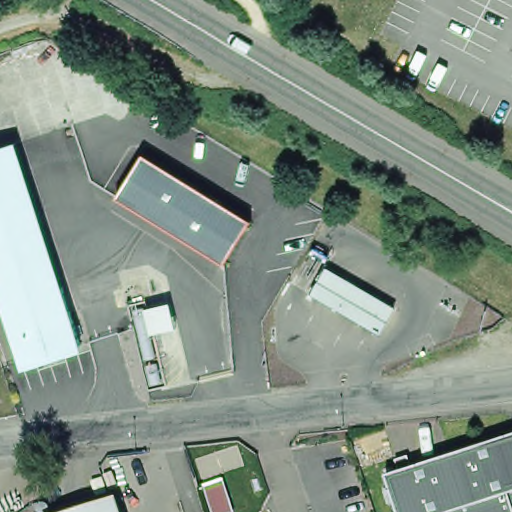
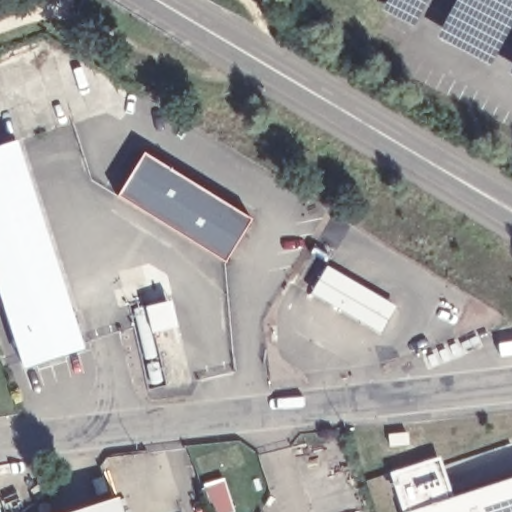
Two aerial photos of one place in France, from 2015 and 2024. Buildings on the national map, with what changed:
new [(382,11),(388,0),(427,0),(412,27),(382,11)]
new [(512,0),(512,24),(490,66),(437,39),(458,0),(512,0)]
new [(512,76),(509,75),(512,69),(512,76)]
unchanged [(15,140),(82,343),(23,362),(0,290),(0,145),(15,140)]
unchanged [(143,155),(252,221),(225,263),(117,197),(143,155)]
unchanged [(394,307),(380,333),(311,293),(327,267),(394,307)]
unchanged [(170,302),(176,328),(152,333),(147,307),(170,302)]
unchanged [(512,512),(456,512),(425,491),(410,464),(512,433),(512,512)]
unchanged [(387,472),(410,464),(425,491),(456,512),(400,512),(387,472)]
unchanged [(206,488),(223,483),(232,512),(213,512),(206,488)]
unchanged [(117,495),(122,512),(63,512),(117,495)]

